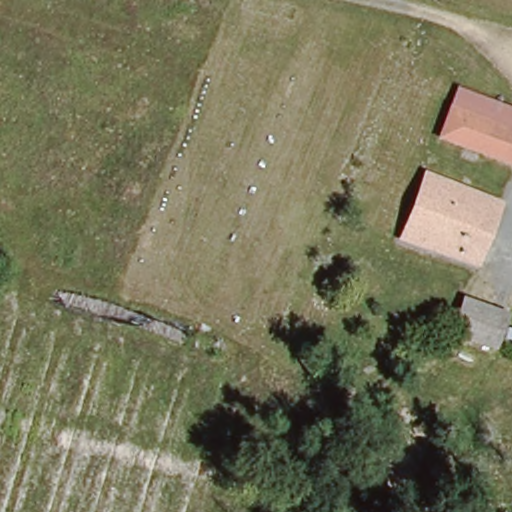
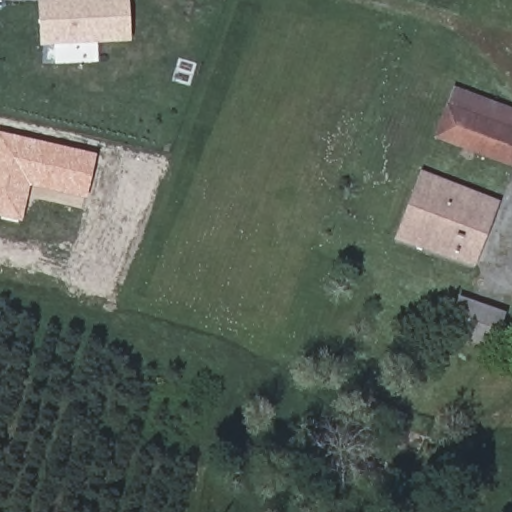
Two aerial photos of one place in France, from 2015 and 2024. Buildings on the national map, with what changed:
new [(40,46),(39,0),(128,0),(131,42),(40,46)]
unchanged [(512,113),(512,125),(509,134),(448,108),(453,87),(512,113)]
unchanged [(448,108),(509,134),(512,135),(512,165),(512,166),(435,134),(444,108),(448,108)]
new [(0,134),(98,155),(87,200),(30,187),(23,223),(0,218),(0,134)]
unchanged [(399,232),(421,173),(498,205),(474,268),(397,238),(399,232)]
unchanged [(447,329),(463,297),(503,318),(487,349),(447,329)]

